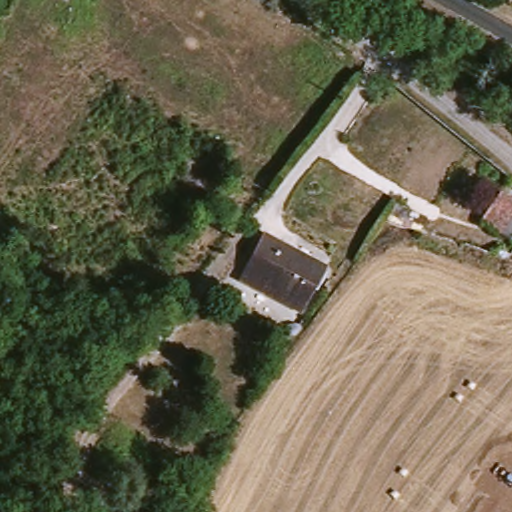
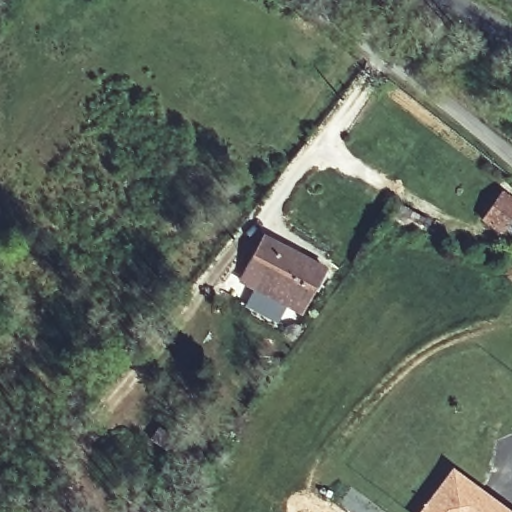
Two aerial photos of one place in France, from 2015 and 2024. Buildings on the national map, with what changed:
unchanged [(512,204),(512,225),(505,237),(487,226),(505,199),(512,204)]
unchanged [(402,215),(394,226),(374,220),(373,218),(385,204),(402,215)]
unchanged [(302,311),(244,280),(264,241),(322,272),(302,311)]
new [(419,512),(450,468),(512,512),(419,512)]

